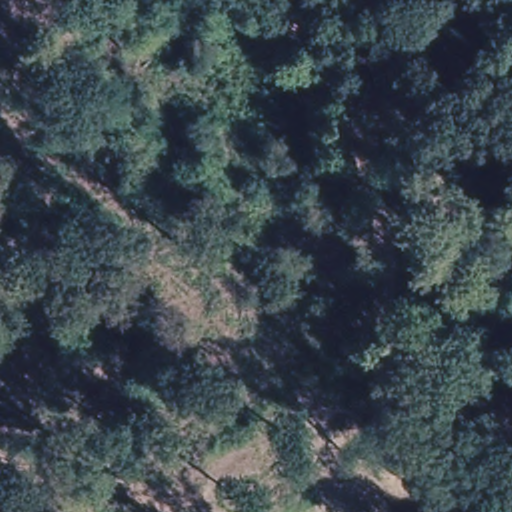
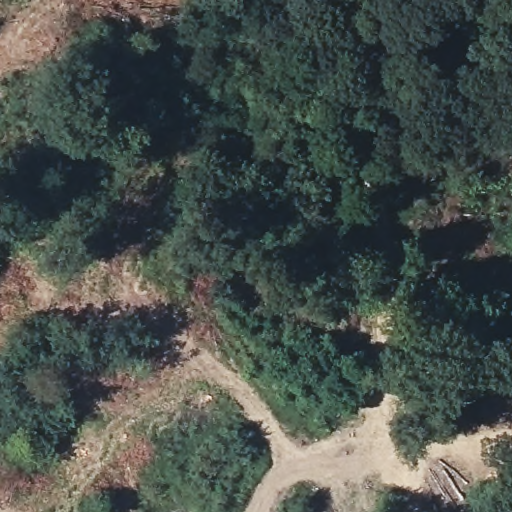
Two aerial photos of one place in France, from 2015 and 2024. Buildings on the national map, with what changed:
unchanged [(333,437),(347,433),(362,453),(341,472),(327,452),(333,437)]

